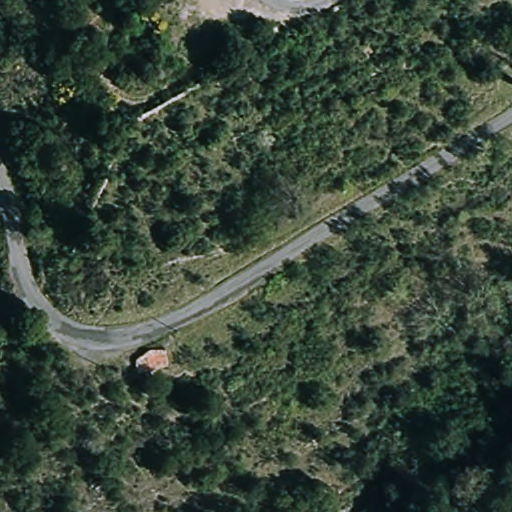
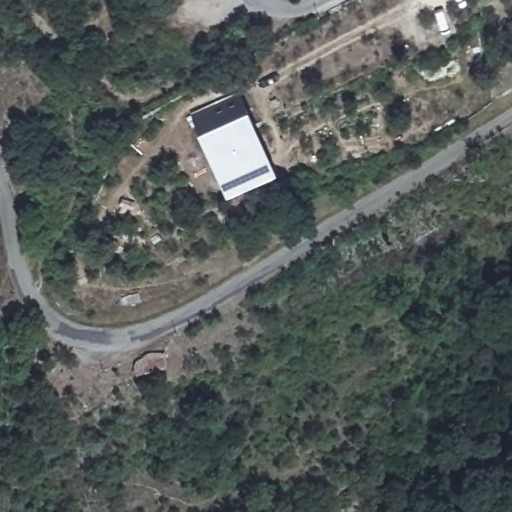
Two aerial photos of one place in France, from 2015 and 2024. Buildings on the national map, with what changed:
new [(227,200),(206,152),(191,120),(239,99),(253,131),(261,149),(270,169),(275,179),(227,200)]
unchanged [(166,373),(136,381),(130,364),(143,351),(160,355),(166,373)]

